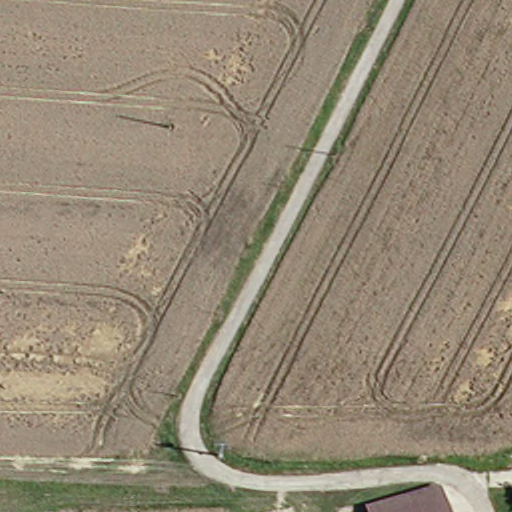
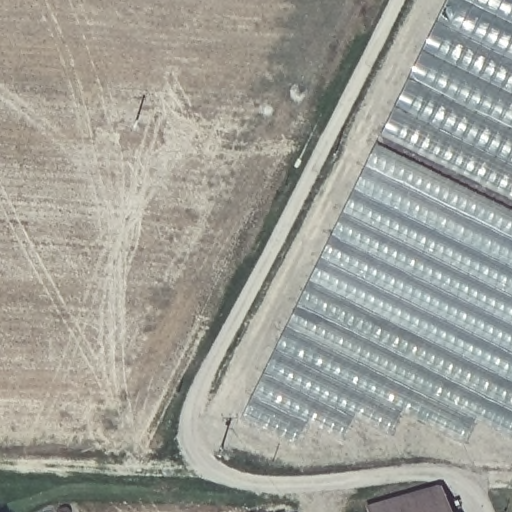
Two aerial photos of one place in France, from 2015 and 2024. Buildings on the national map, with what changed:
new [(512,425),(493,416),(487,429),(472,422),(467,435),(402,404),(392,429),(349,408),(337,432),(300,413),(289,433),(246,413),(447,0),(512,0),(512,425)]
unchanged [(217,465),(219,449),(233,450),(235,467),(217,465)]
unchanged [(449,512),(365,512),(362,505),(420,488),(442,491),(449,512)]

